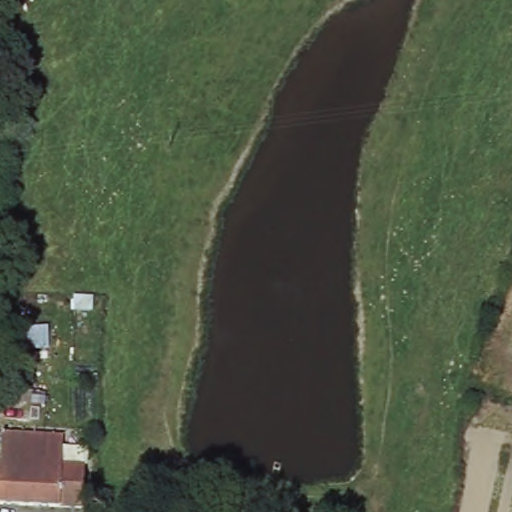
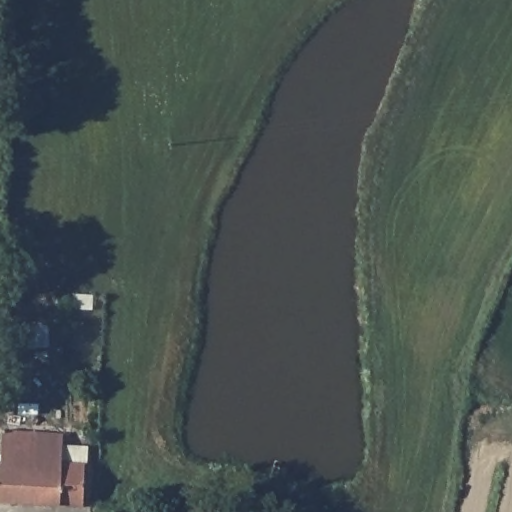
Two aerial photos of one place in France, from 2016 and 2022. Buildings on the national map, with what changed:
unchanged [(9,455),(9,440),(67,440),(67,453),(67,465),(90,465),(89,510),(2,504),(2,475),(9,475),(9,455)]

